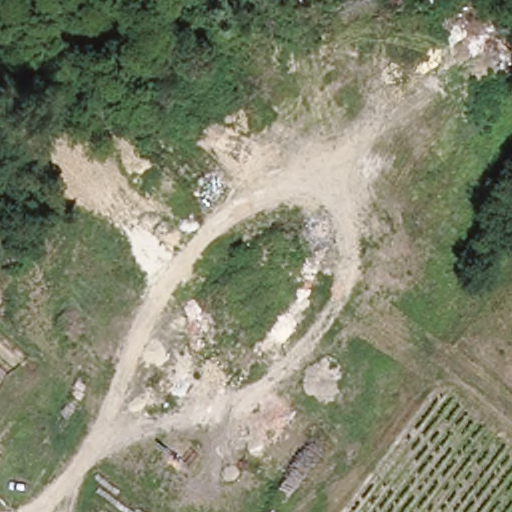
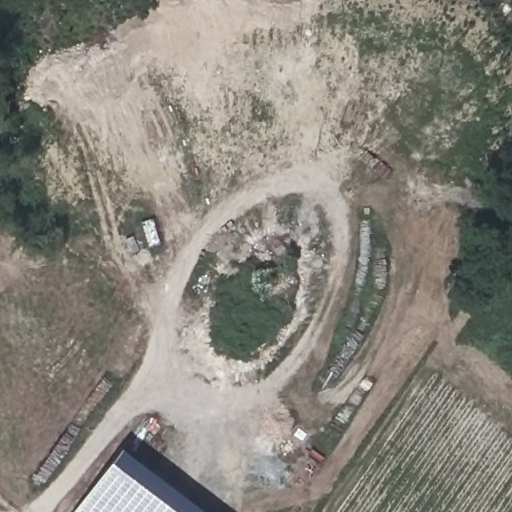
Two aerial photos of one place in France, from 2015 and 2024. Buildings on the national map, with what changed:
new [(122,449),(205,512),(74,512),(122,449)]

